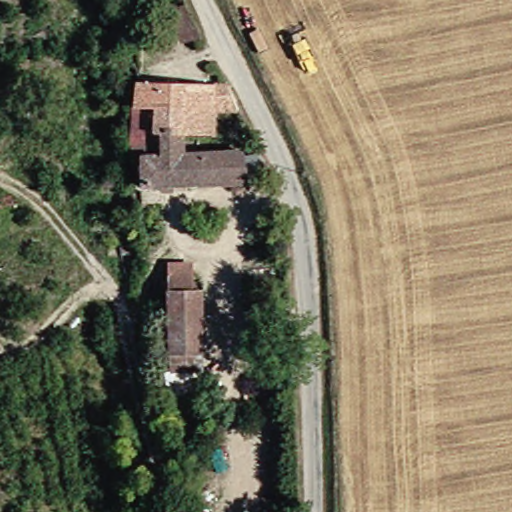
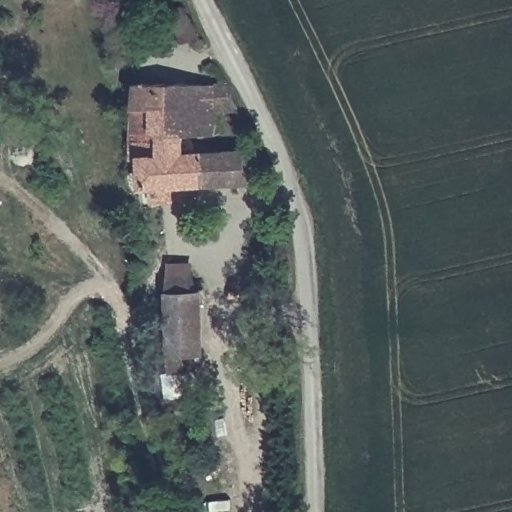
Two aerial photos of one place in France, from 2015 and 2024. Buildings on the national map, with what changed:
unchanged [(133,106),(134,81),(221,81),(233,105),(210,105),(133,106)]
unchanged [(209,130),(180,131),(180,150),(247,152),(245,187),(141,184),(141,160),(131,159),(133,106),(210,105),(209,130)]
unchanged [(169,294),(169,270),(182,270),(202,271),(199,356),(166,355),(169,294)]
unchanged [(209,406),(210,423),(179,425),(178,407),(209,406)]

